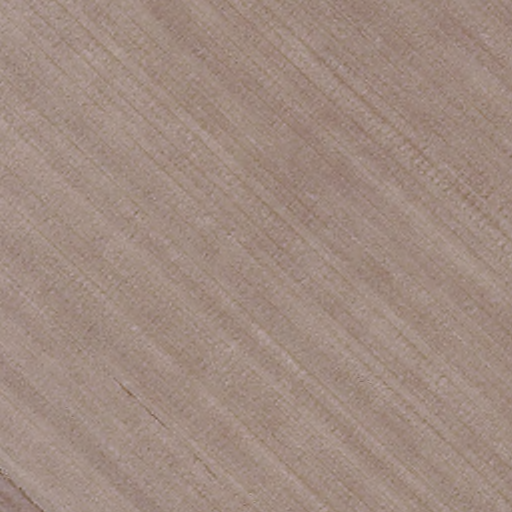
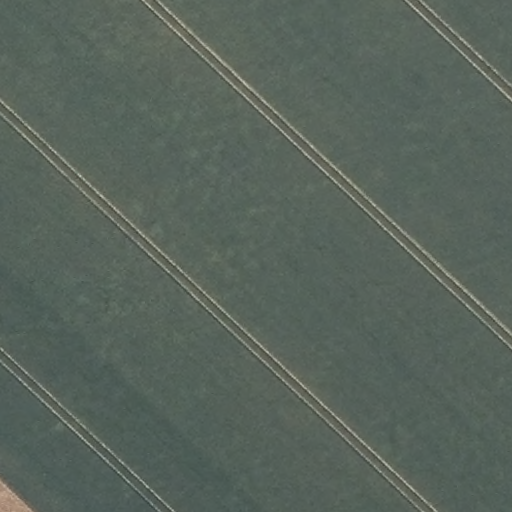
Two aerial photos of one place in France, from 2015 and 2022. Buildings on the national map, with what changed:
[]

